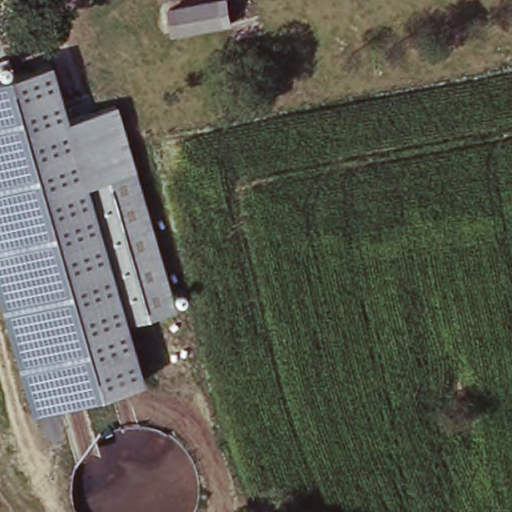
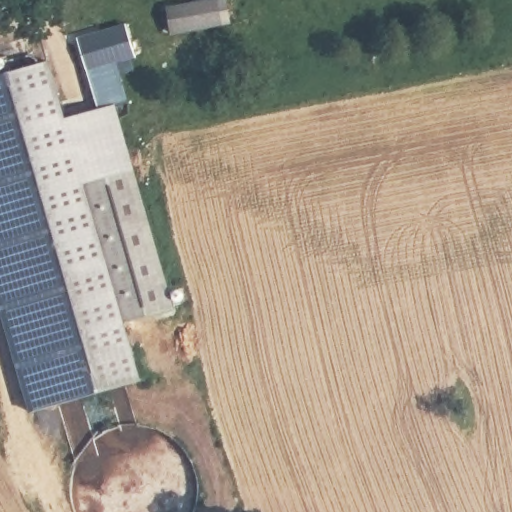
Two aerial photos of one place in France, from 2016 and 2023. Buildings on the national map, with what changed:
unchanged [(172,6),(215,0),(230,0),(233,25),(175,32),(172,6)]
new [(79,39),(123,27),(132,59),(115,65),(126,101),(117,105),(99,110),(79,39)]
unchanged [(65,120),(117,105),(175,315),(130,327),(140,385),(32,418),(0,308),(0,77),(47,62),(65,120)]

